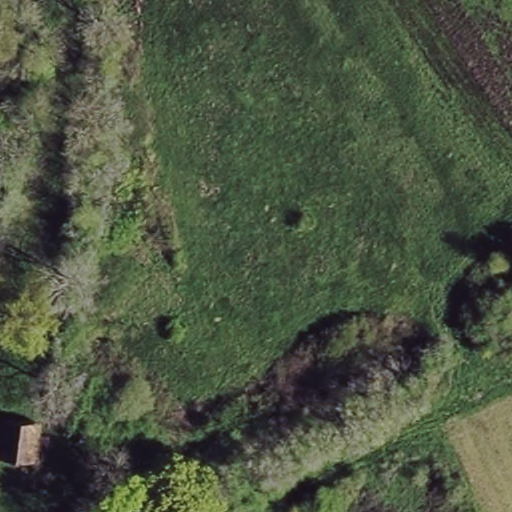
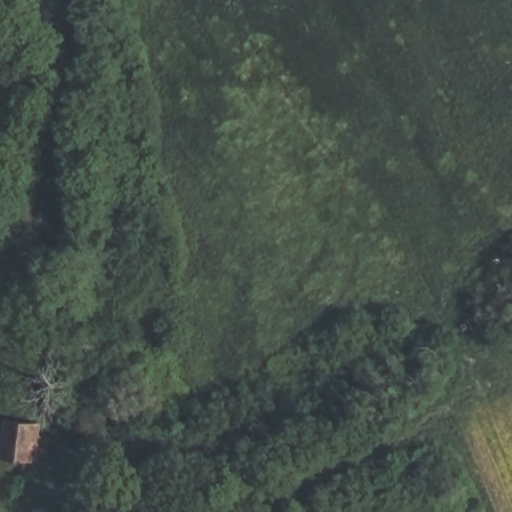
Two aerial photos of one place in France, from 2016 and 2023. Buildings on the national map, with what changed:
unchanged [(48,460),(0,461),(0,425),(47,424),(48,460)]

